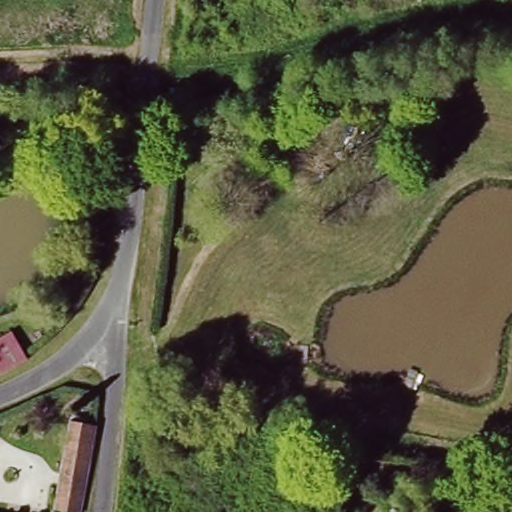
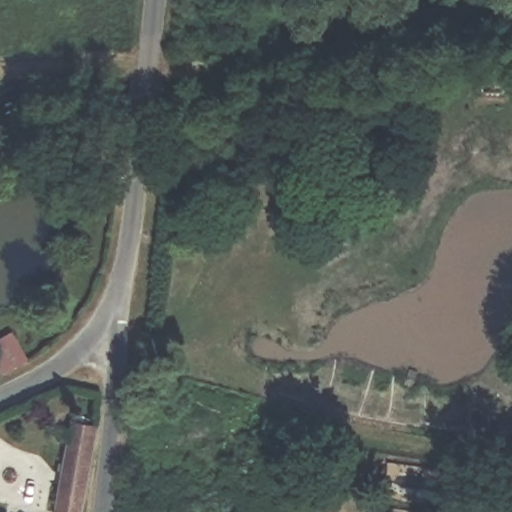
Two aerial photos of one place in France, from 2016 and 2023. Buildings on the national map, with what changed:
unchanged [(67,415),(98,421),(87,508),(54,504),(67,415)]

